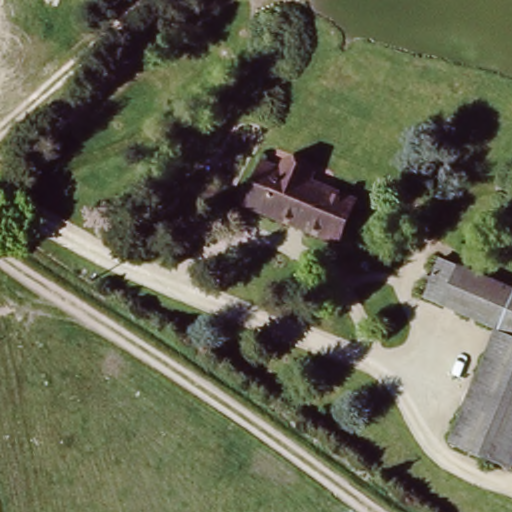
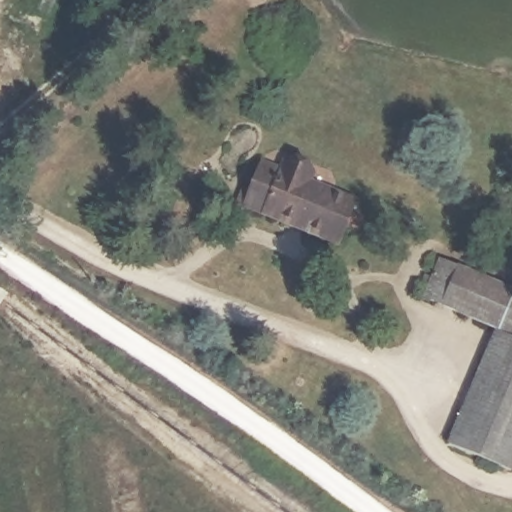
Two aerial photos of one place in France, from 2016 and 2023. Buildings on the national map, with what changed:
unchanged [(336,239),(244,201),(261,160),(282,167),(285,157),(312,168),(307,178),(353,197),(336,239)]
unchanged [(499,330),(425,298),(441,261),(512,292),(512,308),(509,307),(499,330)]
unchanged [(449,443),(499,330),(512,335),(512,464),(510,469),(449,443)]

